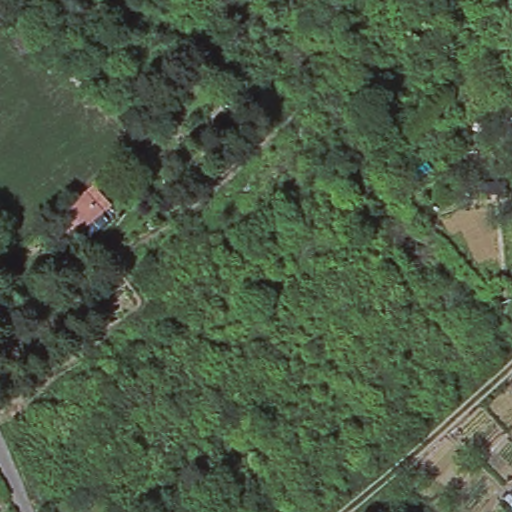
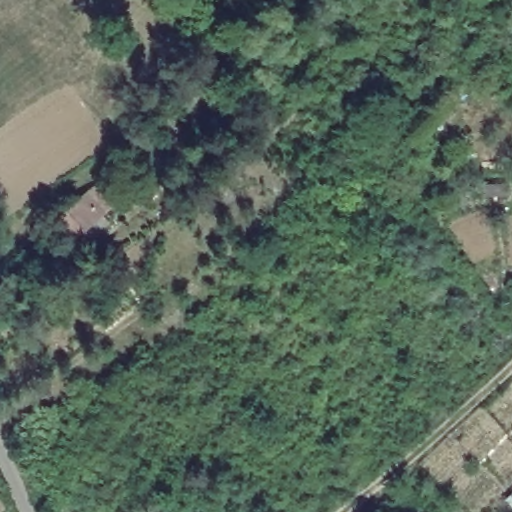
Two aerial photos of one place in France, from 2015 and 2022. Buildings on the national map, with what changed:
unchanged [(93,132),(107,150),(48,201),(33,179),(93,132)]

